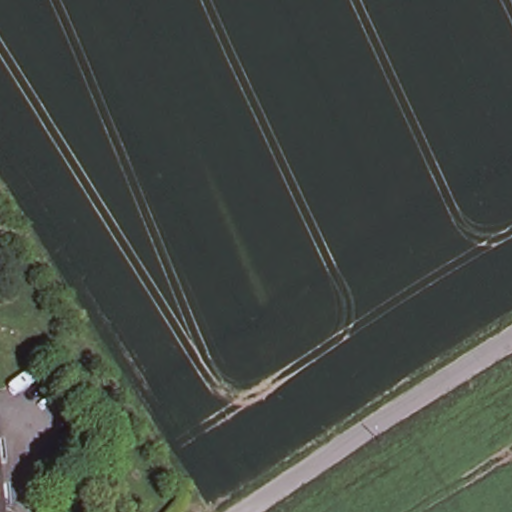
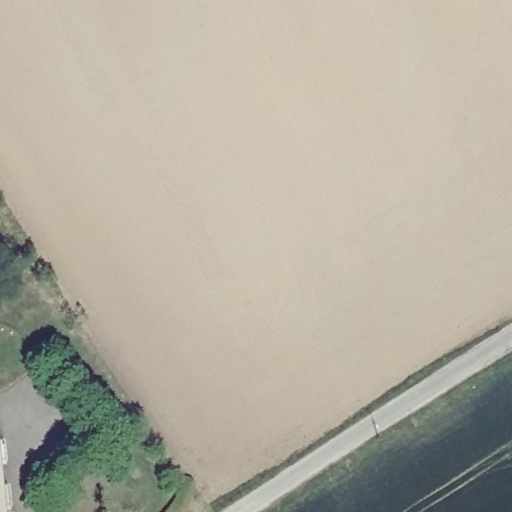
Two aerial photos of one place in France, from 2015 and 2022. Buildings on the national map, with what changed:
unchanged [(0,483),(3,512),(0,512),(0,483)]

